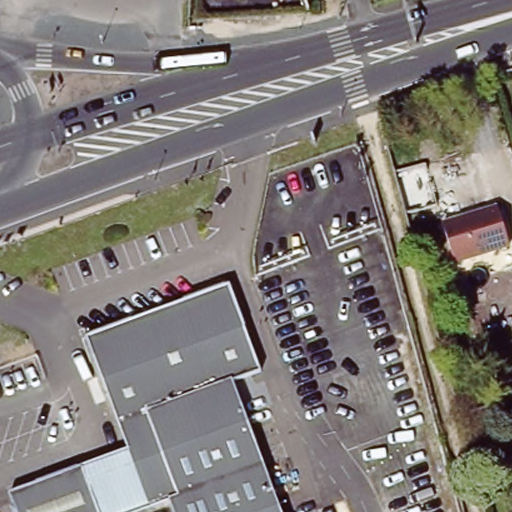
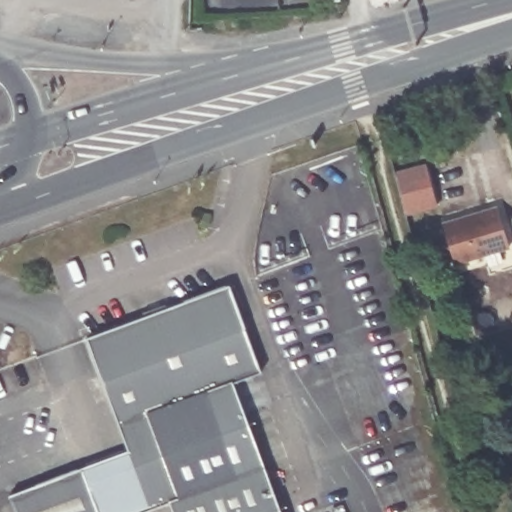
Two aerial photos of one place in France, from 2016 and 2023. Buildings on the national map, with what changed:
unchanged [(376,0),(397,0),(377,6),(376,0)]
new [(425,163),(436,205),(405,214),(394,172),(425,163)]
unchanged [(510,246),(453,262),(440,222),(495,205),(510,246)]
unchanged [(261,372),(233,382),(280,512),(173,512),(169,503),(150,510),(128,450),(87,337),(229,285),(261,372)]
unchanged [(143,512),(98,512),(81,468),(128,450),(150,510),(143,512)]
unchanged [(16,512),(9,494),(81,468),(98,512),(16,512)]

